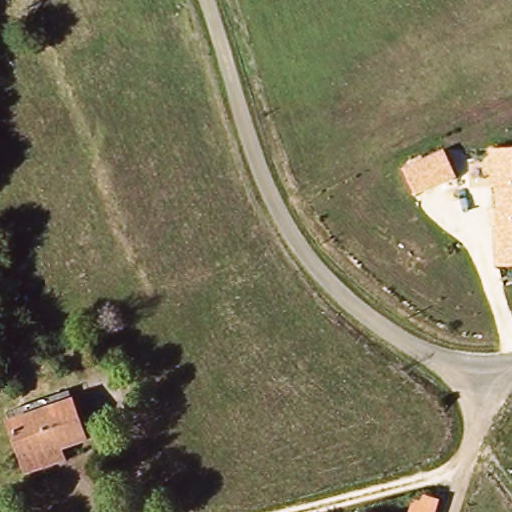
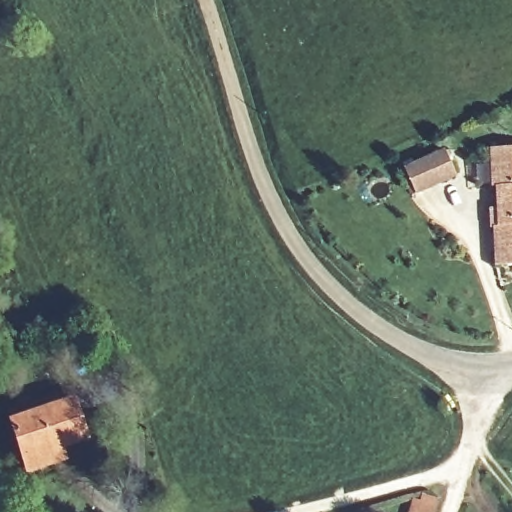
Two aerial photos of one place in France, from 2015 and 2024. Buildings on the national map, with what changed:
unchanged [(445,150),(457,180),(415,199),(402,168),(445,150)]
unchanged [(512,268),(490,269),(489,230),(496,230),(496,190),(489,190),(488,151),(512,150),(512,268)]
unchanged [(25,462),(12,424),(75,404),(88,442),(25,462)]
unchanged [(427,493),(443,498),(439,512),(422,512),(427,493)]

